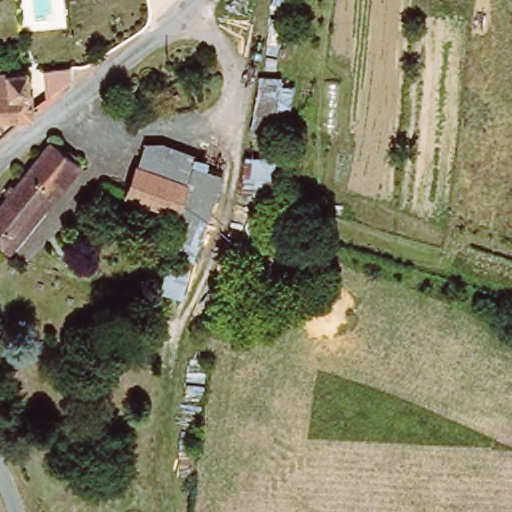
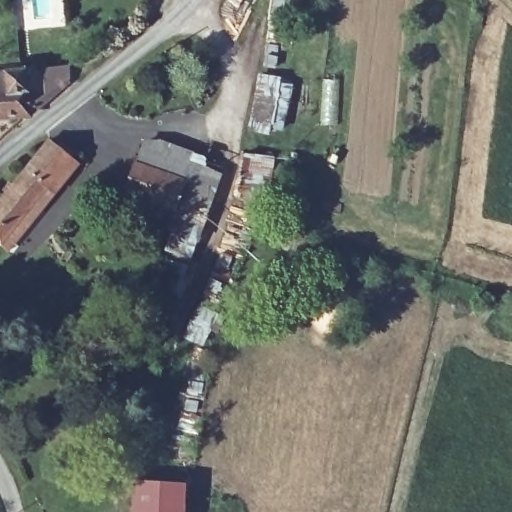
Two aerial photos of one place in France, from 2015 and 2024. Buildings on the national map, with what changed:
unchanged [(26,66),(30,114),(0,116),(0,69),(22,66),(26,66)]
unchanged [(260,76),(284,79),(274,139),(250,133),(260,76)]
unchanged [(194,259),(165,247),(177,214),(123,196),(137,164),(143,145),(165,143),(193,155),(209,159),(206,169),(224,176),(194,259)]
unchanged [(48,147),(79,173),(56,199),(46,193),(0,248),(0,207),(48,147)]
unchanged [(272,198),(240,195),(247,154),(277,160),(272,198)]
new [(184,512),(132,512),(134,479),(186,481),(184,512)]

